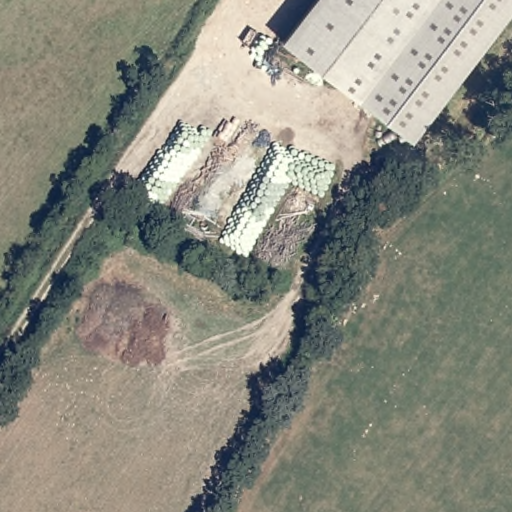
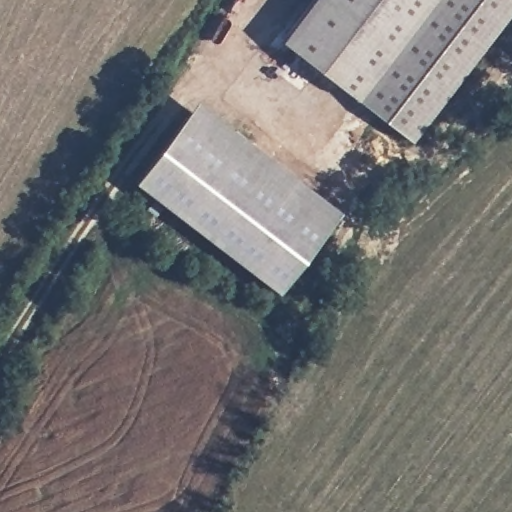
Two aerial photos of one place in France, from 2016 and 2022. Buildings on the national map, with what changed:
unchanged [(361,105),(282,46),(317,0),(440,0),(361,105)]
unchanged [(412,143),(361,105),(440,0),(512,0),(512,13),(412,143)]
new [(197,102),(341,213),(280,293),(135,182),(197,102)]

